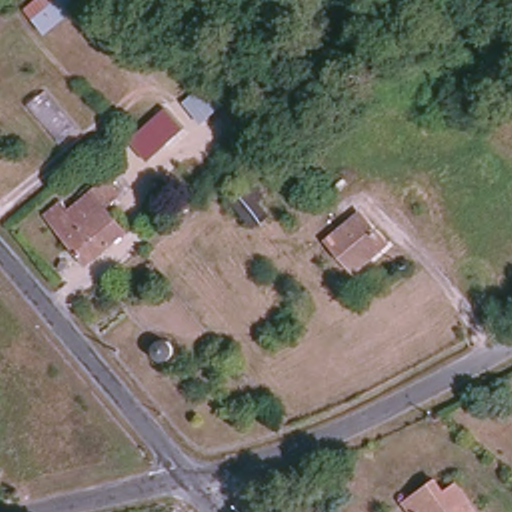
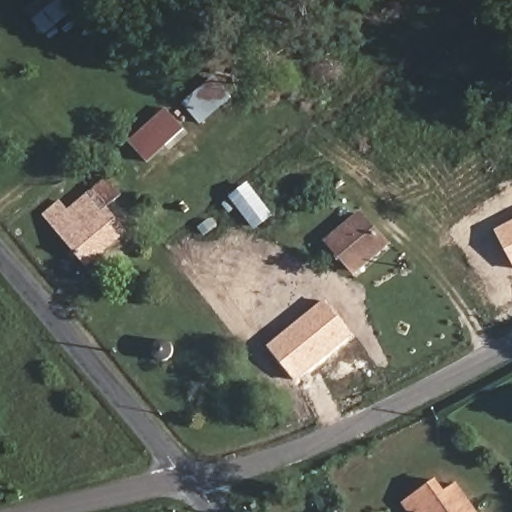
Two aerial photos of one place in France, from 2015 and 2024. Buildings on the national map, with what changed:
unchanged [(39,0),(100,0),(48,36),(28,10),(39,0)]
demolished [(61,145),(29,109),(48,92),(79,130),(61,145)]
unchanged [(129,148),(172,107),(176,113),(174,117),(182,131),(145,168),(129,148)]
unchanged [(66,199),(73,207),(111,177),(129,202),(116,210),(130,227),(115,239),(111,234),(79,258),(46,215),(66,199)]
unchanged [(231,201),(251,185),(270,217),(255,231),(231,201)]
unchanged [(331,245),(369,219),(388,245),(349,270),(331,245)]
new [(512,221),(512,264),(495,230),(512,221)]
new [(324,298),(353,336),(295,381),(267,346),(324,298)]
unchanged [(175,352),(169,360),(163,362),(158,360),(156,356),(155,351),(156,346),(159,342),(164,341),(169,341),(172,342),(175,346),(175,352)]
unchanged [(439,484),(445,492),(458,485),(477,512),(411,512),(407,506),(439,484)]

